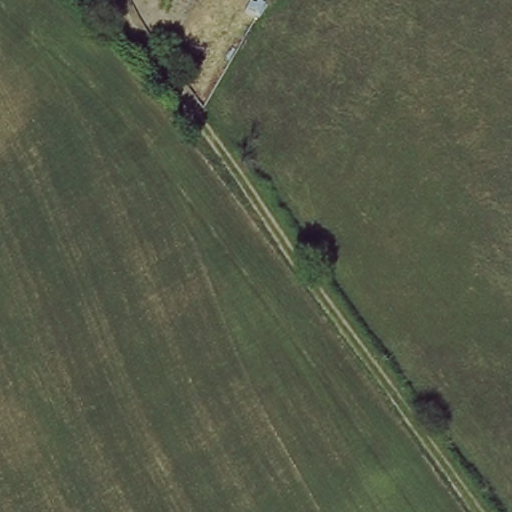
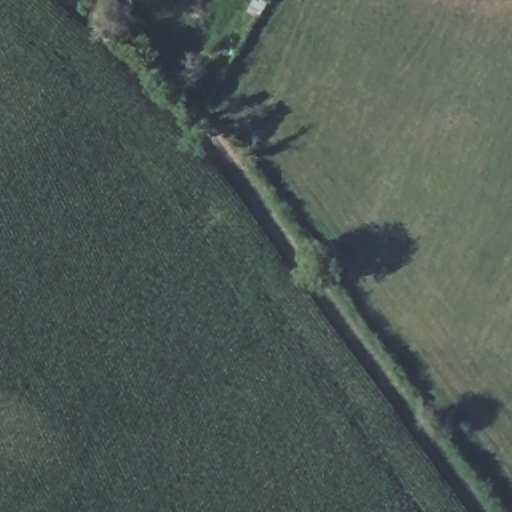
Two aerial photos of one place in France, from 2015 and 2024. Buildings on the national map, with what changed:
unchanged [(259,0),(269,0),(268,3),(259,0)]

